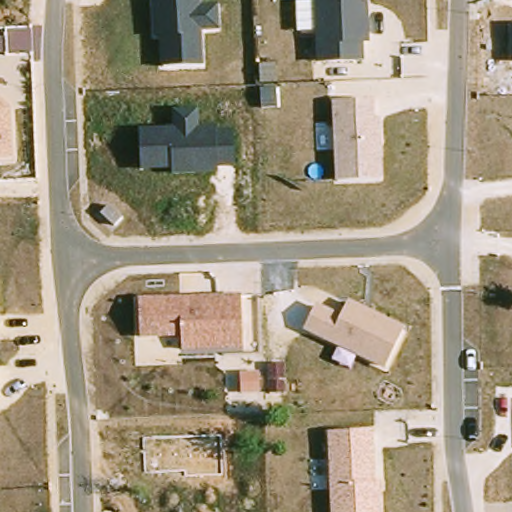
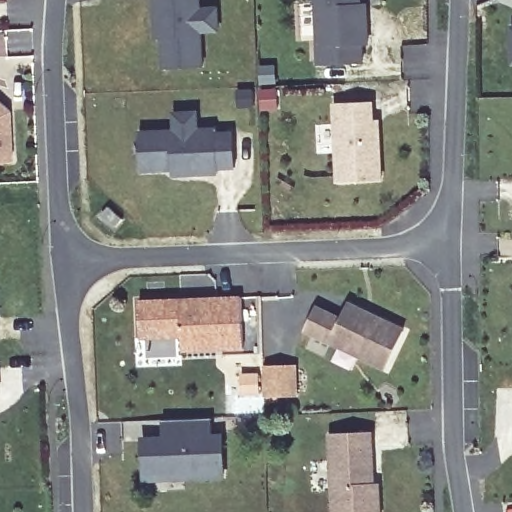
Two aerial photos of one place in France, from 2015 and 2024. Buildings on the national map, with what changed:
unchanged [(169,67),(166,15),(154,15),(154,0),(202,0),(205,65),(169,67)]
unchanged [(368,3),(370,44),(364,45),(365,62),(317,64),(314,0),(362,0),(362,3),(368,3)]
unchanged [(511,24),(512,25),(512,64),(511,64),(511,24)]
unchanged [(0,160),(0,99),(12,109),(14,159),(0,160)]
unchanged [(375,100),(376,119),(382,119),(385,180),(336,182),(333,102),(375,100)]
unchanged [(215,128),(215,134),(233,133),(235,163),(219,165),(220,171),(196,173),(195,163),(142,167),(141,132),(215,128)]
unchanged [(185,348),(185,335),(142,336),(141,300),(241,297),(242,345),(185,348)]
unchanged [(304,330),(317,304),(341,315),(347,299),(406,327),(386,369),(304,330)]
new [(295,364),(295,396),(280,396),(265,397),(264,365),(279,365),(295,364)]
new [(214,417),(214,432),(224,432),(226,477),(144,482),(141,437),(163,435),(162,421),(214,417)]
unchanged [(378,483),(383,482),(385,512),(332,512),(330,434),(374,429),(378,483)]

